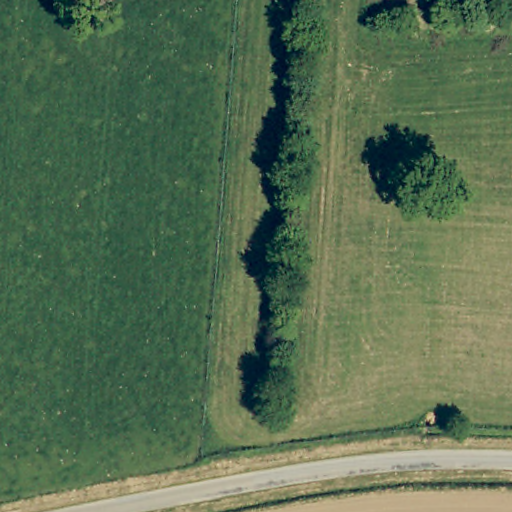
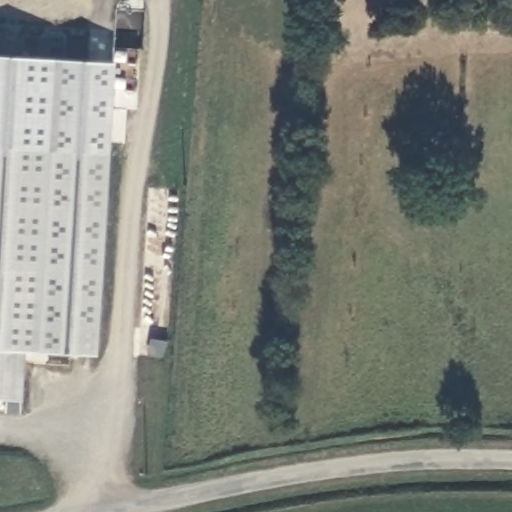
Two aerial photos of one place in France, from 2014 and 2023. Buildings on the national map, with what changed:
new [(26,352),(21,400),(0,399),(0,147),(109,154),(98,356),(26,352)]

